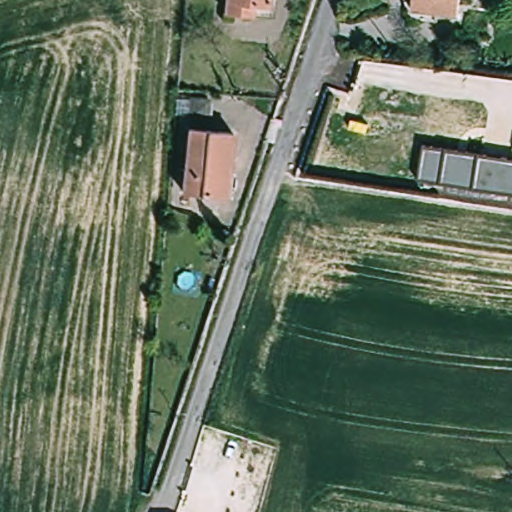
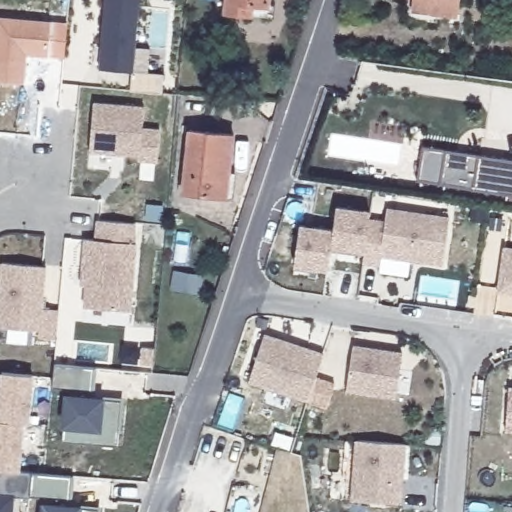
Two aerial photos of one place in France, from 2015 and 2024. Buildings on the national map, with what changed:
new [(139,0),(133,71),(163,74),(161,94),(130,91),(131,74),(98,70),(104,0),(139,0)]
unchanged [(224,12),(225,0),(268,0),(268,7),(266,17),(251,15),(224,12)]
unchanged [(412,9),(413,0),(460,0),(458,16),(412,9)]
new [(63,57),(25,55),(23,83),(0,82),(0,18),(66,22),(63,57)]
new [(91,102),(143,107),(141,128),(158,130),(156,163),(136,161),(136,157),(87,152),(91,102)]
unchanged [(218,196),(183,192),(188,130),(233,134),(228,179),(226,197),(218,196)]
unchanged [(420,160),(477,168),(479,158),(512,164),(512,196),(416,182),(420,160)]
new [(329,246),(326,269),(292,264),(298,223),(331,229),(335,206),(369,211),(363,251),(329,246)]
new [(367,221),(383,223),(385,209),(448,218),(441,263),(379,254),(377,264),(361,262),(367,221)]
new [(83,239),(94,240),(96,220),(135,224),(133,244),(136,244),(128,313),(82,308),(84,286),(78,285),(83,239)]
new [(502,246),(512,248),(512,294),(496,292),(502,246)]
new [(45,266),(40,308),(58,310),(55,340),(36,338),(37,330),(0,327),(0,268),(0,262),(45,266)]
new [(475,298),(473,308),(467,307),(469,297),(475,298)]
new [(264,334),(324,353),(307,402),(248,383),(264,334)]
new [(352,345),(402,352),(395,398),(345,390),(352,345)]
new [(81,445),(60,443),(65,390),(50,389),(53,365),(94,369),(92,392),(91,398),(121,401),(118,433),(117,448),(81,445)]
new [(30,424),(24,423),(20,472),(0,470),(0,372),(35,375),(30,424)]
new [(507,388),(512,388),(512,431),(504,430),(507,388)]
new [(355,440),(405,444),(400,504),(351,500),(355,440)]
new [(28,498),(28,499),(12,497),(11,512),(0,512),(0,470),(30,473),(28,498)]
new [(43,499),(28,498),(30,473),(71,477),(69,501),(68,507),(99,510),(99,512),(42,512),(43,499)]

